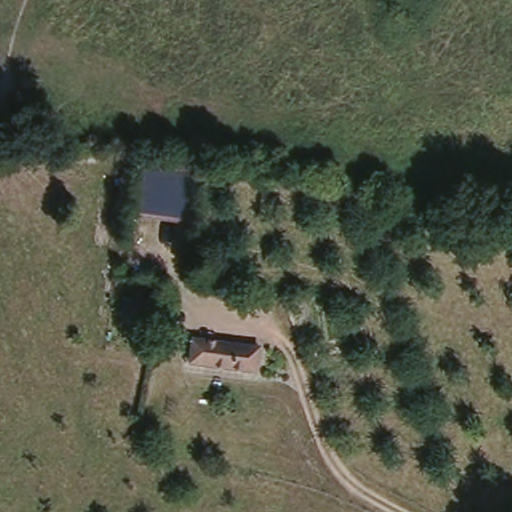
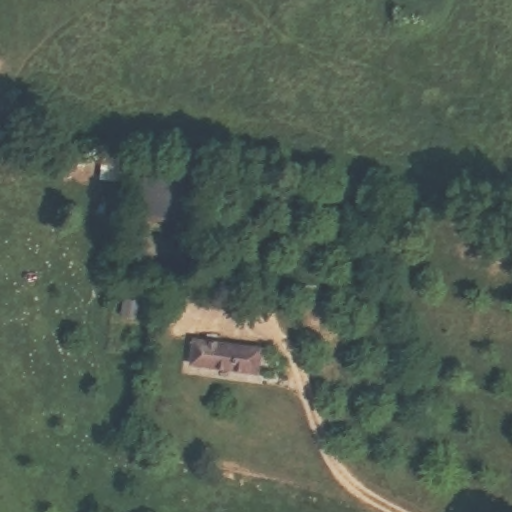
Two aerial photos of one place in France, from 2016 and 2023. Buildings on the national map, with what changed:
unchanged [(139,171),(202,180),(193,225),(132,215),(139,171)]
unchanged [(255,374),(190,359),(194,339),(261,354),(255,374)]

